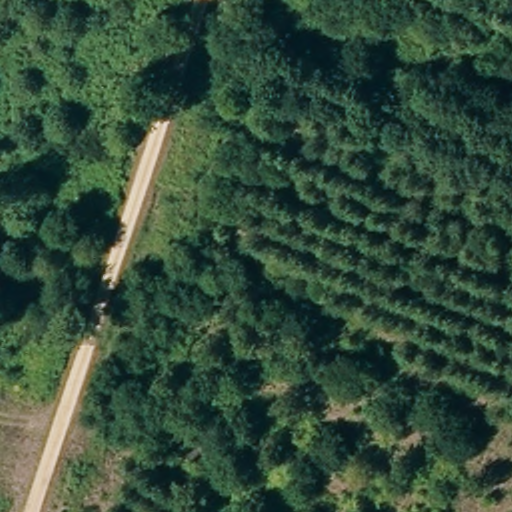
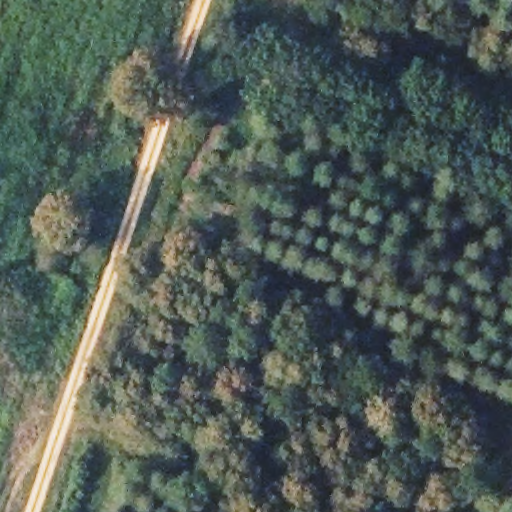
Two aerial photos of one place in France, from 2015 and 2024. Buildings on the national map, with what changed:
[]

